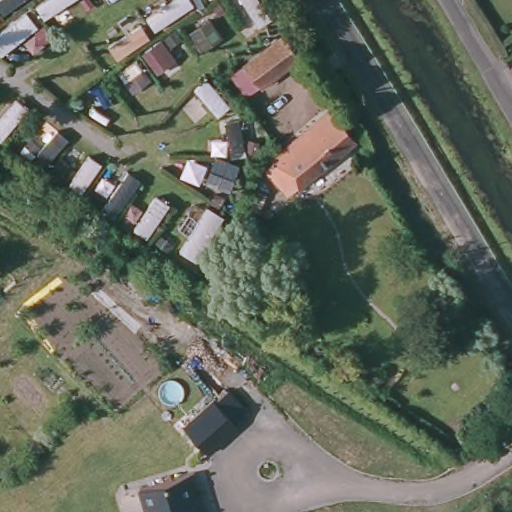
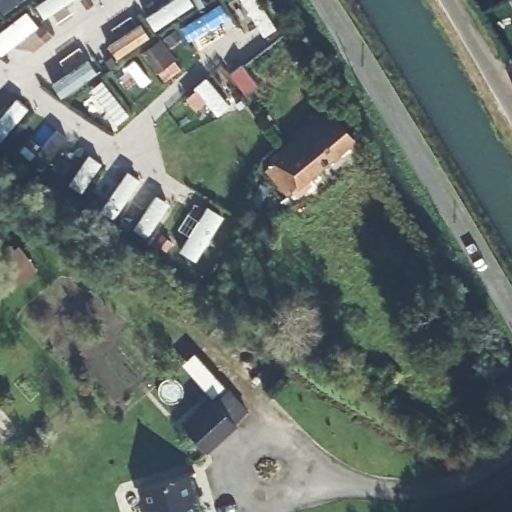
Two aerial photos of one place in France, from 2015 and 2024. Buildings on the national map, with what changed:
unchanged [(280,40),(296,59),(258,88),(244,70),(280,40)]
unchanged [(512,63),(512,71),(508,65),(512,63)]
unchanged [(358,138),(288,191),(271,168),(276,164),(272,158),(337,109),(358,138)]
unchanged [(214,401),(226,390),(246,413),(234,424),(235,425),(206,452),(182,426),(212,399),(214,401)]
unchanged [(186,468),(200,512),(147,512),(138,483),(186,468)]

